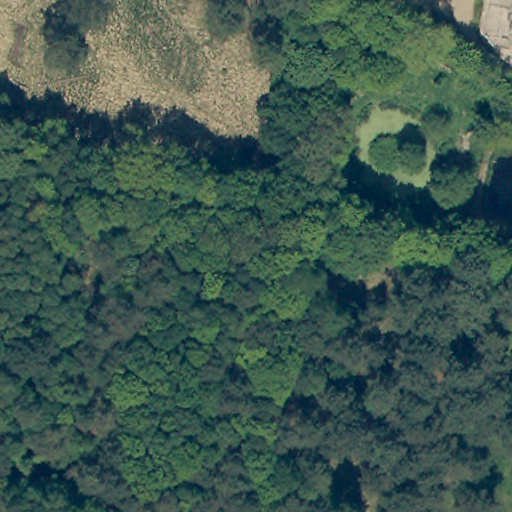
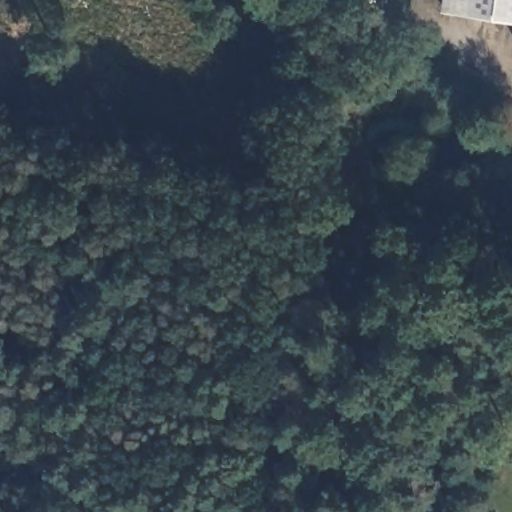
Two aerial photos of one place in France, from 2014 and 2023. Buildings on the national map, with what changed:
new [(445,0),(512,0),(512,21),(443,12),(445,0)]

